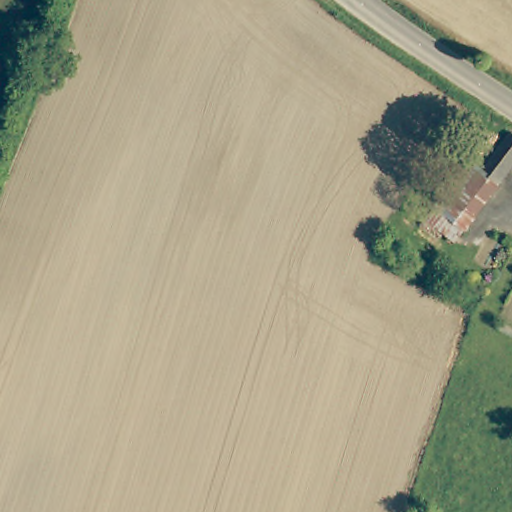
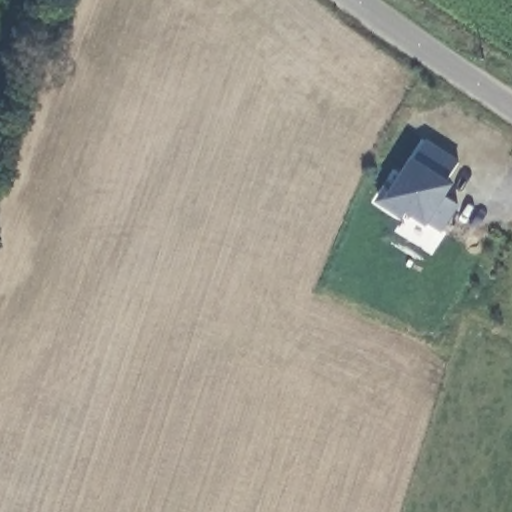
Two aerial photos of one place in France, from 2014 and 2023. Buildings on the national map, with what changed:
new [(452,180),(457,184),(450,195),(463,203),(445,234),(430,225),(415,217),(413,219),(385,203),(413,155),(418,158),(430,139),(463,160),(452,180)]
demolished [(453,208),(438,227),(432,235),(418,225),(469,159),(482,169),(453,208)]

